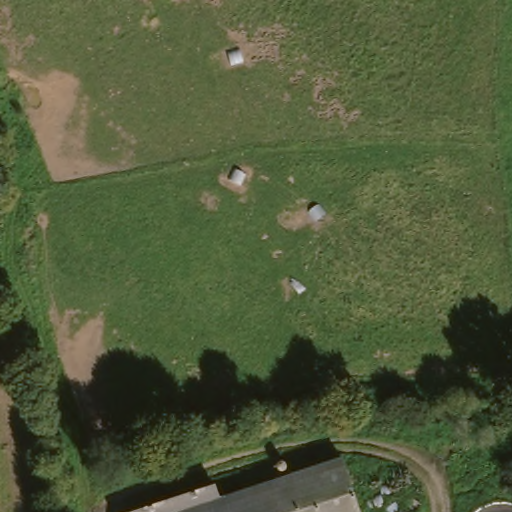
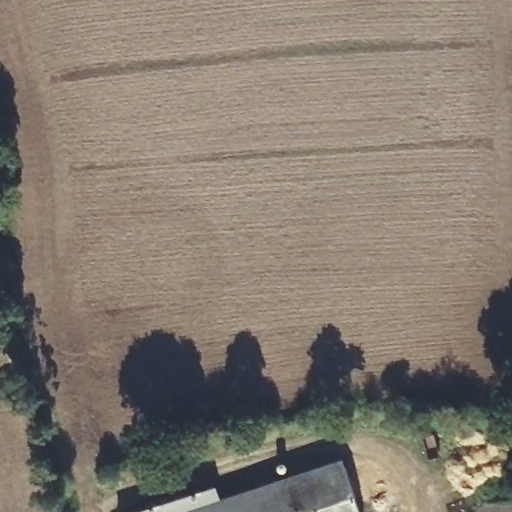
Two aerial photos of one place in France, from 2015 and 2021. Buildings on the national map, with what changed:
unchanged [(215,503),(339,465),(354,512),(142,512),(211,490),(215,503)]

